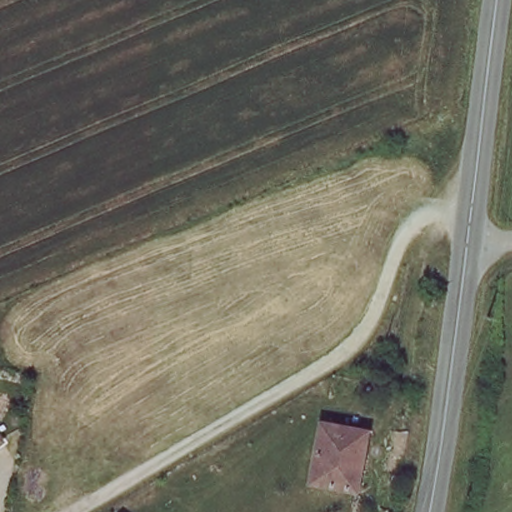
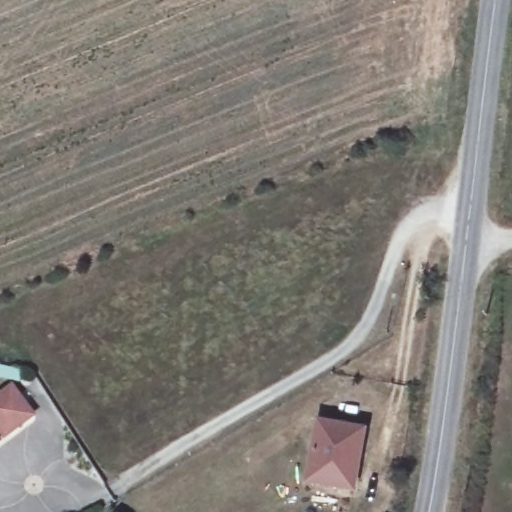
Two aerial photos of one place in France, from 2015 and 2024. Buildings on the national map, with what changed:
new [(0,393),(14,383),(37,416),(6,439),(0,430),(0,393)]
unchanged [(343,490),(308,484),(319,423),(362,430),(357,460),(351,491),(343,490)]

